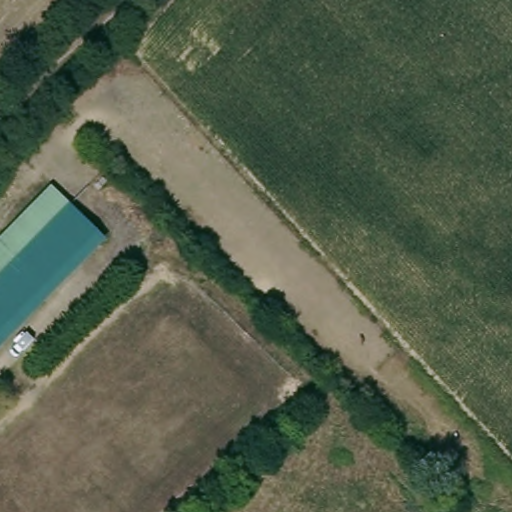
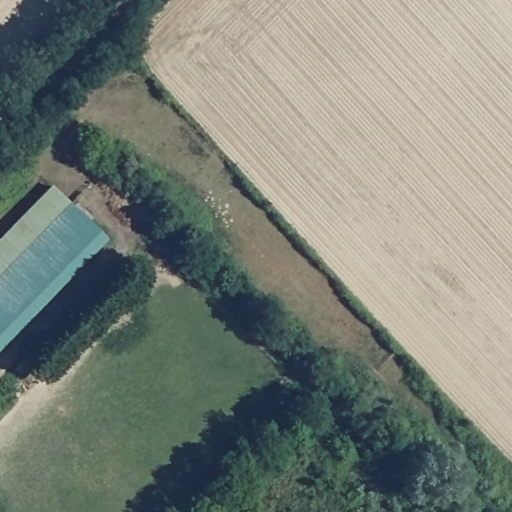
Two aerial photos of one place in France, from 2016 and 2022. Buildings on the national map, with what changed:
unchanged [(66,205),(0,273),(0,237),(46,190),(66,205)]
unchanged [(105,242),(0,348),(0,273),(66,205),(105,242)]

